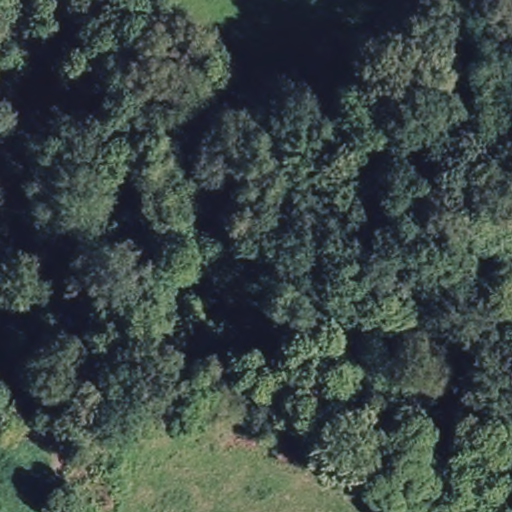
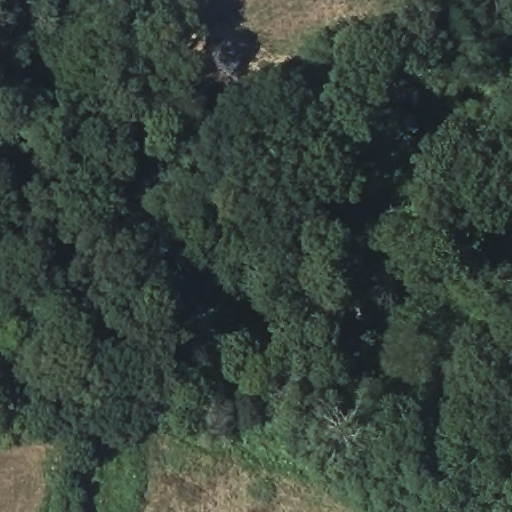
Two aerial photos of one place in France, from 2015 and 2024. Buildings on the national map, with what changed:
[]

